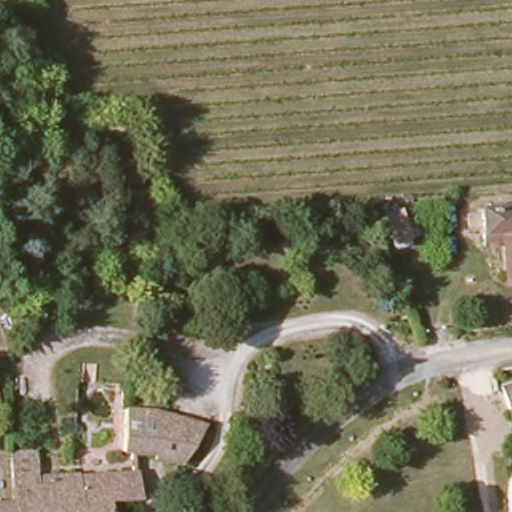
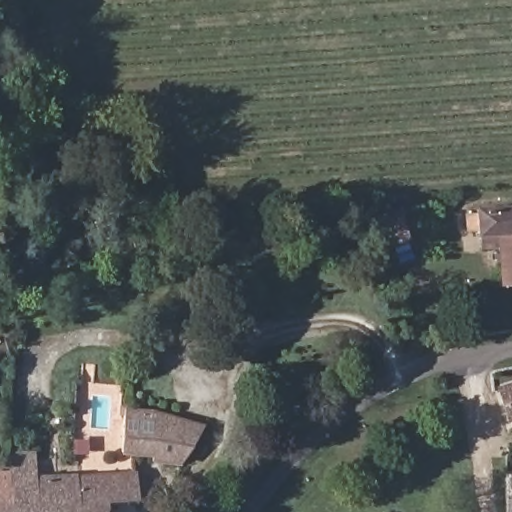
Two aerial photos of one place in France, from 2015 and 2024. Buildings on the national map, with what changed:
unchanged [(455,215),(431,217),(432,198),(455,195),(455,215)]
unchanged [(483,230),(477,230),(477,208),(512,204),(512,278),(503,278),(503,242),(484,242),(483,230)]
unchanged [(512,417),(501,390),(512,387),(512,417)]
unchanged [(204,429),(181,474),(161,473),(161,462),(151,461),(150,452),(122,451),(126,410),(127,410),(129,409),(156,410),(205,426),(204,429)]
unchanged [(509,473),(509,467),(512,467),(512,512),(506,512),(507,473),(509,473)]
unchanged [(81,507),(79,474),(92,474),(140,472),(142,501),(110,501),(110,512),(68,512),(68,508),(81,507)]
unchanged [(11,500),(10,479),(30,478),(79,474),(81,507),(68,508),(68,512),(11,512),(11,501),(11,500)]
unchanged [(11,501),(11,512),(0,512),(0,502),(11,501)]

